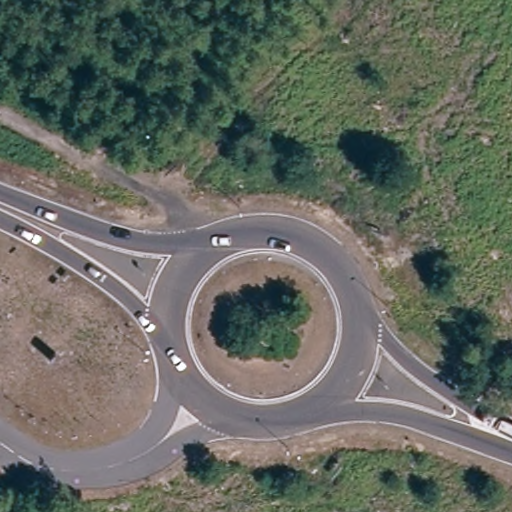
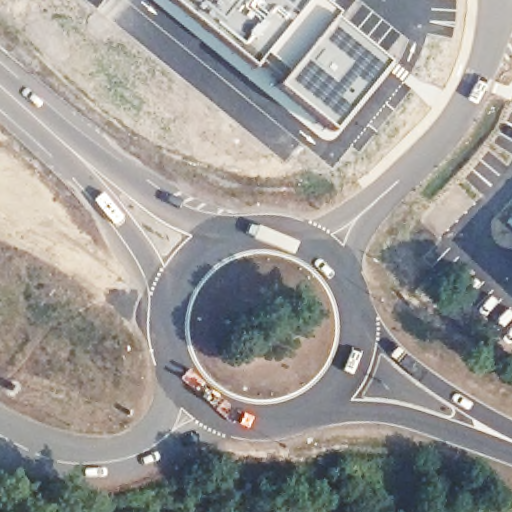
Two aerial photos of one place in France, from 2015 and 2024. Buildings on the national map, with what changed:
new [(282,75),(261,58),(251,69),(165,0),(320,0),(335,13),(282,75)]
new [(282,75),(335,13),(393,64),(348,120),(333,136),(320,129),(272,88),(282,75)]

